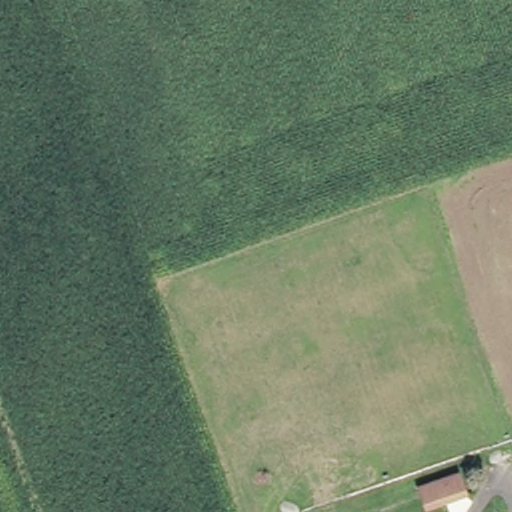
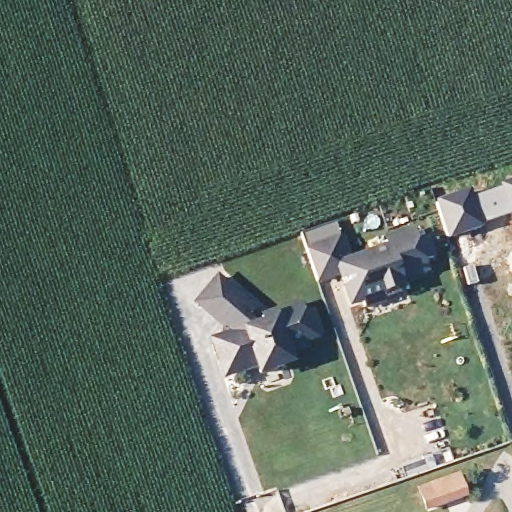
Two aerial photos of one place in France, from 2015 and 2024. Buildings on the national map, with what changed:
new [(509,216),(485,225),(446,238),(435,200),(473,189),(474,193),(499,185),(512,181),(512,224),(509,216)]
new [(340,235),(348,257),(386,244),(384,239),(413,228),(416,237),(425,234),(432,252),(423,256),(426,265),(398,275),(401,282),(380,290),(382,296),(364,303),(361,296),(350,300),(345,283),(349,282),(346,273),(341,275),(340,270),(316,278),(305,247),(340,235)]
new [(225,361),(219,343),(238,337),(227,328),(225,331),(196,307),(216,282),(254,312),(246,322),(255,330),(262,327),(260,322),(299,308),(302,318),(311,315),(320,337),(306,342),(308,347),(292,353),(293,357),(288,366),(265,375),(260,360),(254,362),(250,368),(238,373),(231,376),(225,361)]
unchanged [(468,497),(425,511),(417,487),(460,472),(468,497)]

